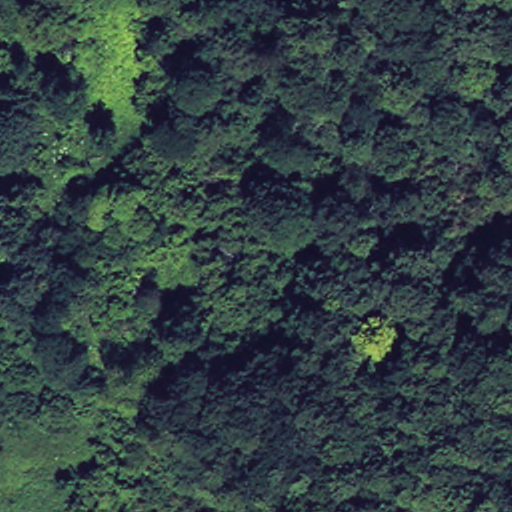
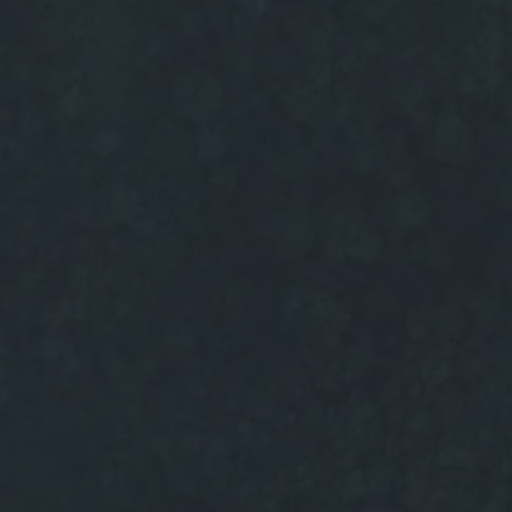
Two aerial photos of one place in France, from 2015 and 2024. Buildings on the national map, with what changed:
unchanged [(129,220),(75,205),(80,189),(87,190),(90,179),(104,182),(137,192),(132,209),(129,220)]

